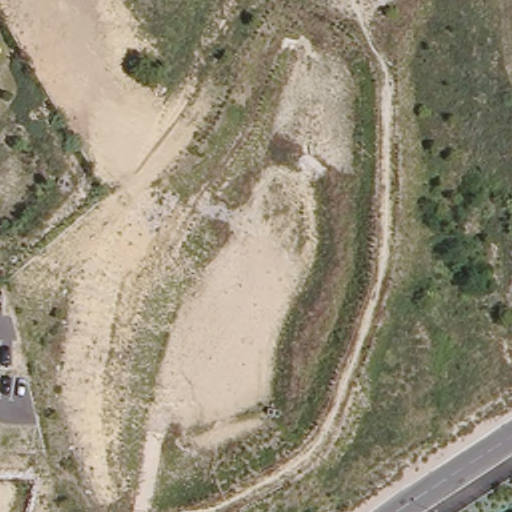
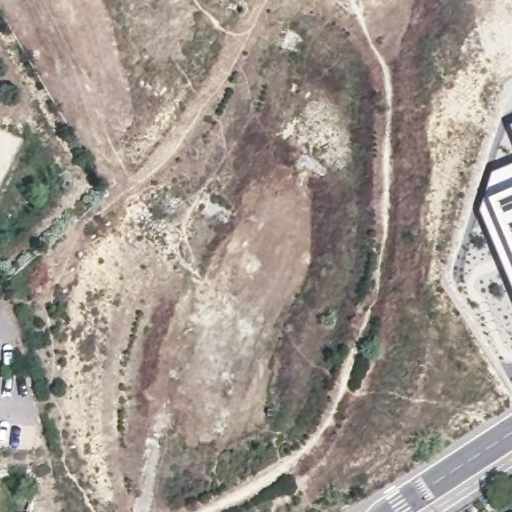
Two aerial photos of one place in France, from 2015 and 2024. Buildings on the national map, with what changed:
new [(509,124),(512,123),(512,132),(509,124)]
new [(484,198),(490,172),(512,162),(512,291),(480,213),(484,198)]

